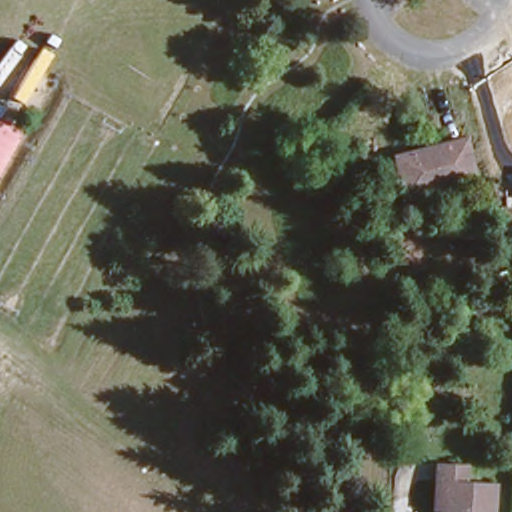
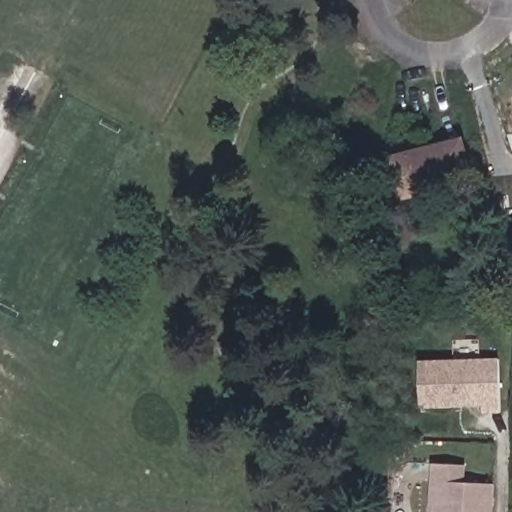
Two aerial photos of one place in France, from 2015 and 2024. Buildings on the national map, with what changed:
unchanged [(393,149),(455,133),(467,180),(406,196),(393,149)]
new [(484,413),(484,405),(421,407),(420,359),(499,357),(501,412),(484,413)]
unchanged [(460,477),(492,479),(490,512),(434,512),(437,477),(423,476),(425,451),(461,453),(460,477)]

